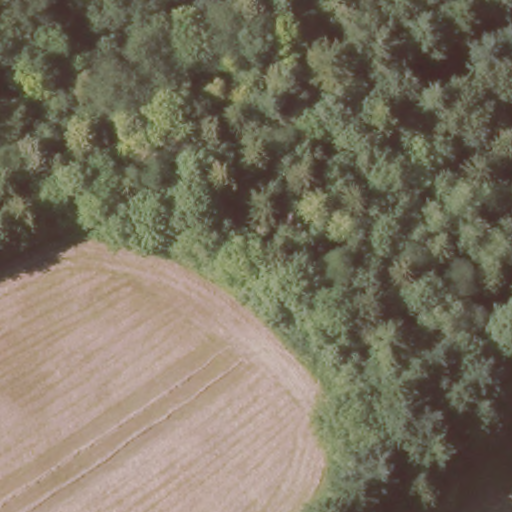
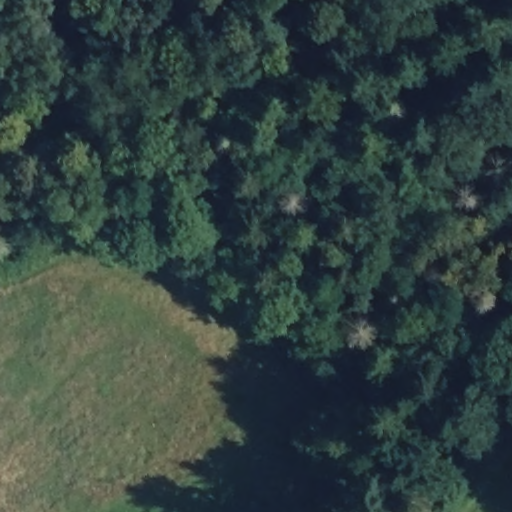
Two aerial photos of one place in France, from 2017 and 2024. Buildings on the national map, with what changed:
unchanged [(424,104),(450,85),(465,105),(441,122),(424,104)]

